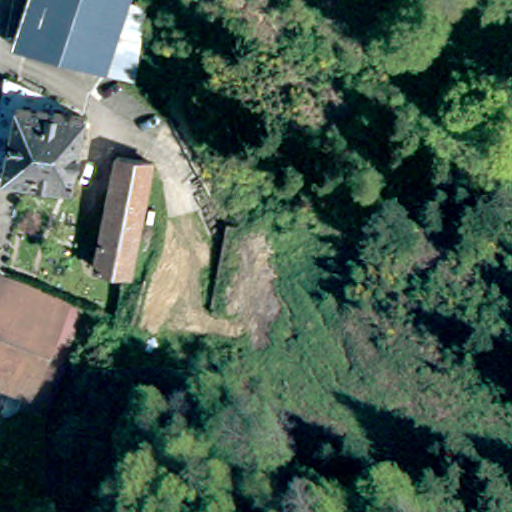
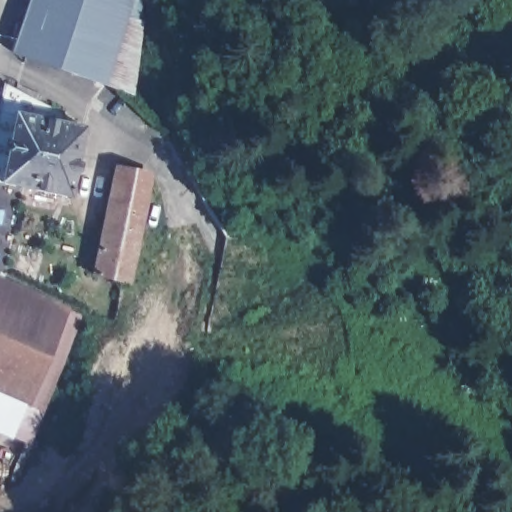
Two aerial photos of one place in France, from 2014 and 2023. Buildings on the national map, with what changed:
unchanged [(149,0),(150,4),(138,25),(106,91),(15,52),(30,0),(149,0)]
unchanged [(106,91),(138,25),(155,33),(132,103),(106,91)]
unchanged [(14,85),(73,118),(70,126),(94,132),(75,203),(30,194),(10,281),(0,276),(0,155),(14,85)]
unchanged [(128,282),(96,275),(98,258),(101,248),(119,166),(153,174),(128,282)]
unchanged [(38,411),(0,394),(0,280),(68,307),(75,310),(38,411)]
unchanged [(35,420),(38,411),(75,310),(86,314),(45,424),(35,420)]

